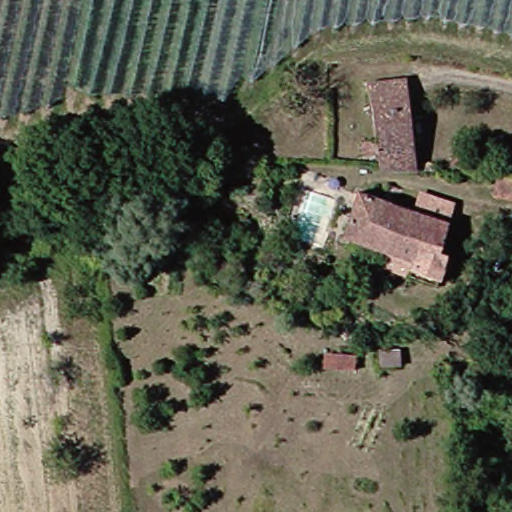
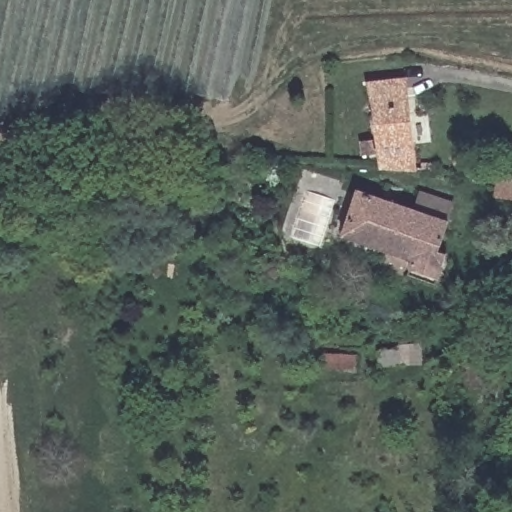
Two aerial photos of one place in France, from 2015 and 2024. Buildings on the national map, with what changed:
unchanged [(388,167),(381,82),(414,77),(424,169),(388,167)]
unchanged [(449,255),(453,256),(445,287),(411,277),(416,257),(348,237),(363,192),(458,219),(449,255)]

